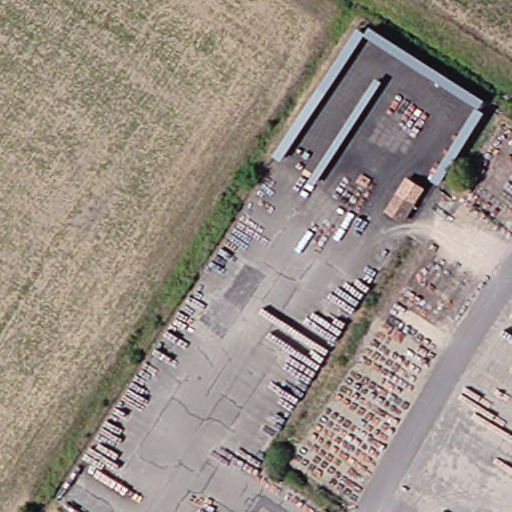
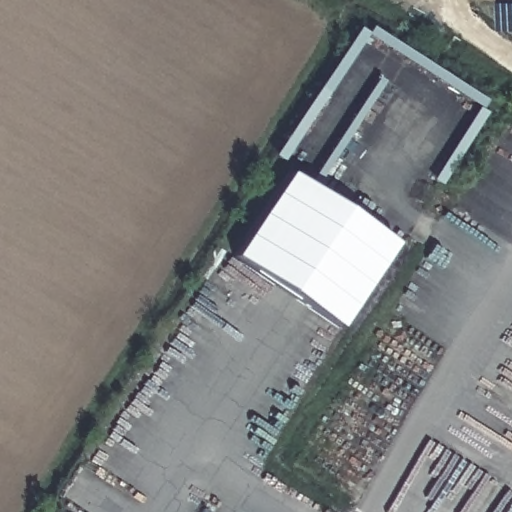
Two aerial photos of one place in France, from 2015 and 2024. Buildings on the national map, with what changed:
new [(233,256),(289,172),(396,244),(339,328),(233,256)]

